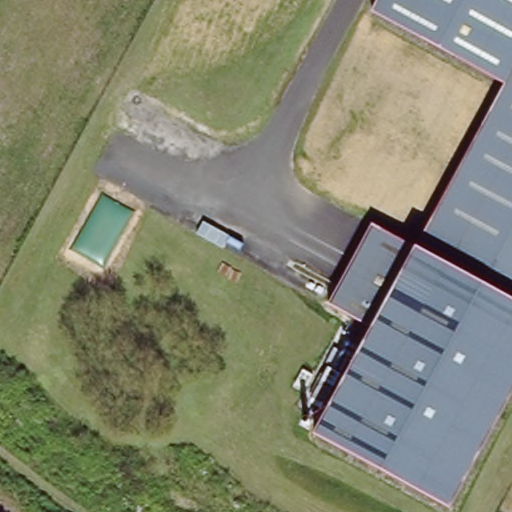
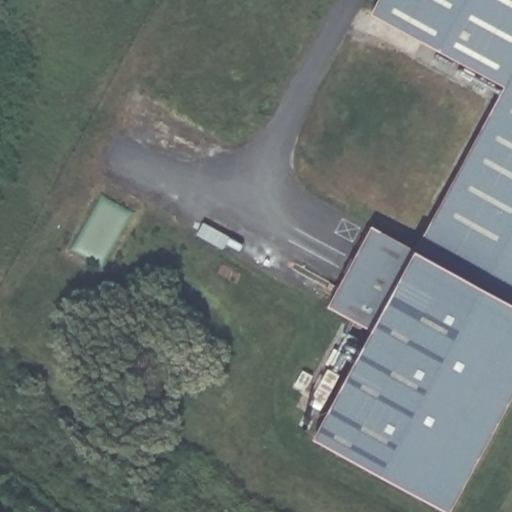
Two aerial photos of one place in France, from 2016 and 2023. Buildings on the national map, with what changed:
unchanged [(504,80),(375,9),(380,0),(512,0),(512,296),(415,241),(504,80)]
unchanged [(372,217),(415,241),(512,296),(512,397),(452,507),(311,430),(370,323),(326,299),(372,217)]

